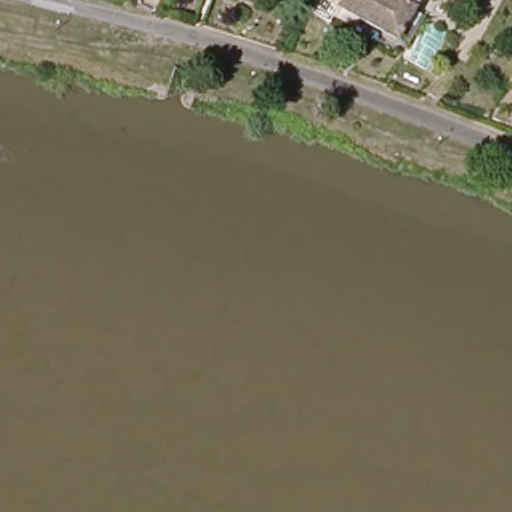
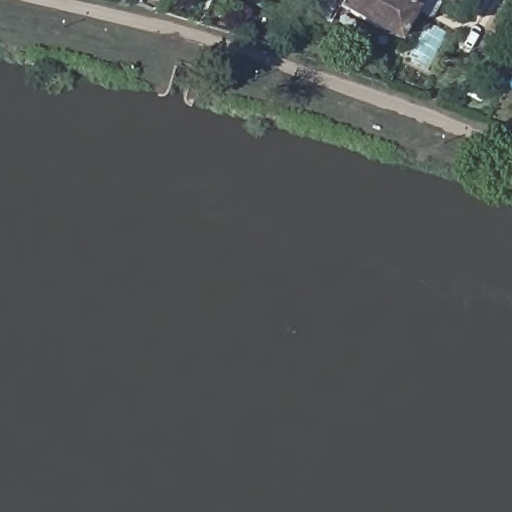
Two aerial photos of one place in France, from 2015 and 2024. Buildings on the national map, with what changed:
unchanged [(326,0),(417,0),(395,38),(326,0)]
unchanged [(448,0),(458,0),(456,4),(448,0)]

